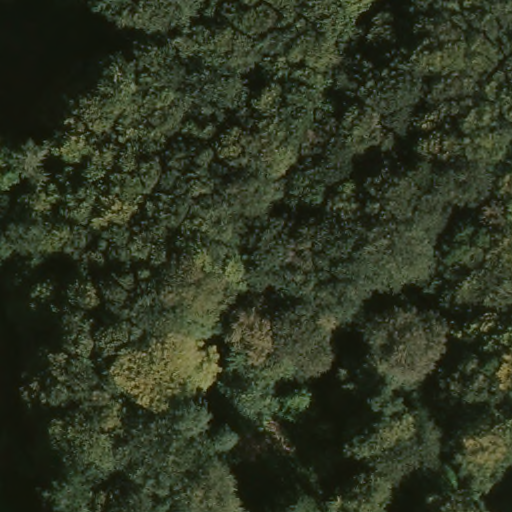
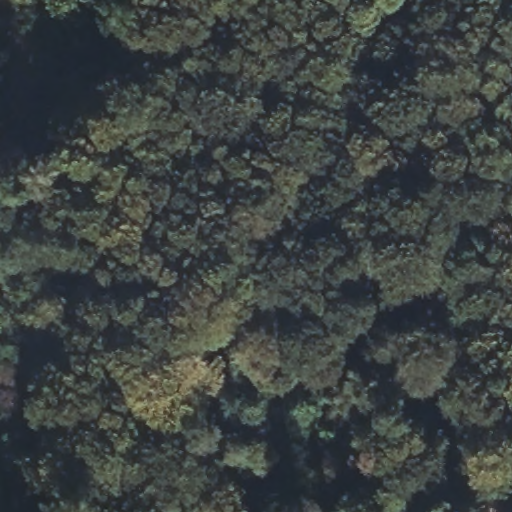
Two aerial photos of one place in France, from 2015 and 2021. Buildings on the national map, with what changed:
unchanged [(69,20),(37,0),(83,0),(69,20)]

